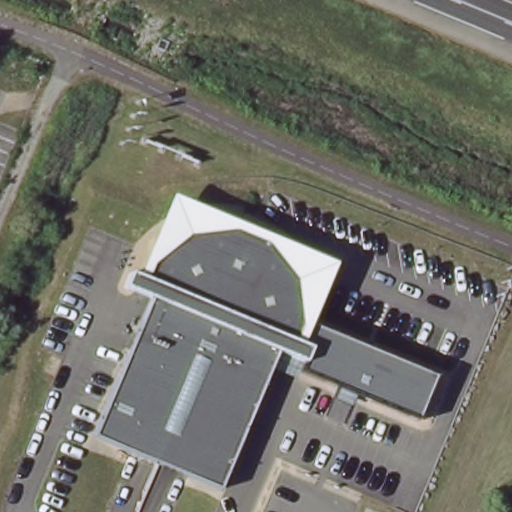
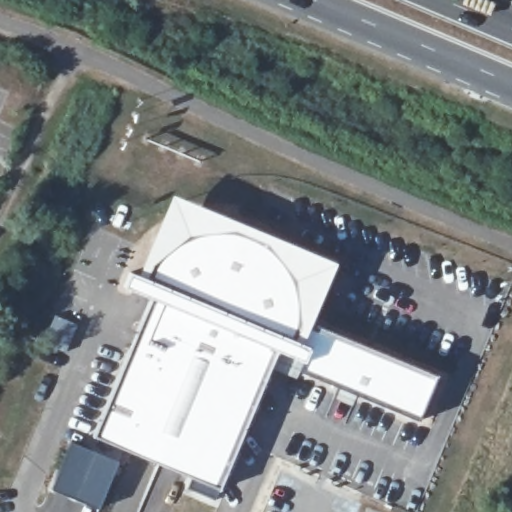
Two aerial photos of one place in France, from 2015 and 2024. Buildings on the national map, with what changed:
unchanged [(121,285),(127,271),(140,276),(144,267),(149,259),(155,251),(162,244),(169,237),(177,232),(186,227),(195,224),(205,221),(214,220),(224,219),(234,220),(244,222),(253,224),(262,228),(271,233),(279,238),(286,245),(293,252),(299,260),(304,268),(308,277),(311,286),(313,296),(314,306),(314,316),(313,325),(311,335),(308,344),(302,359),(275,348),(218,487),(91,435),(148,296),(121,285)]
unchanged [(297,371),(302,359),(308,344),(311,335),(313,325),(440,376),(419,421),(297,371)]
new [(71,440),(120,460),(100,511),(50,490),(71,440)]

